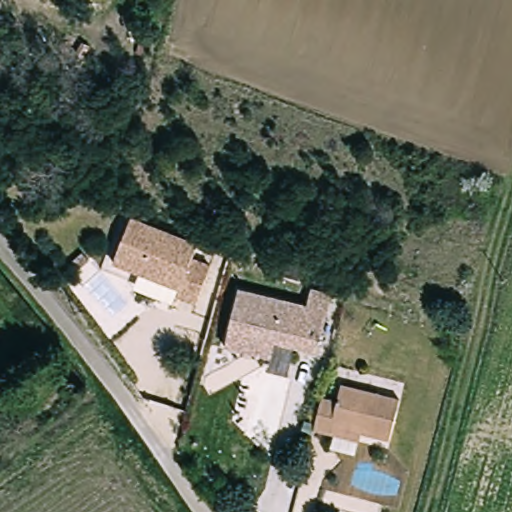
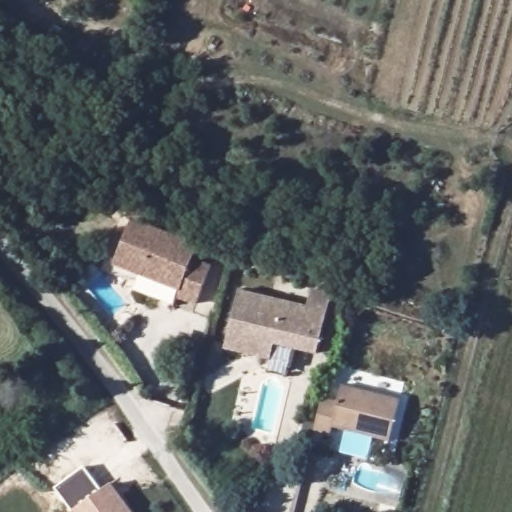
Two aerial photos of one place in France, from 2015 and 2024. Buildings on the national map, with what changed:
unchanged [(133,218),(200,245),(194,259),(213,266),(198,303),(178,295),(181,288),(116,261),(133,218)]
unchanged [(242,290),(309,309),(314,292),(335,298),(318,356),(275,343),(271,359),(226,346),(242,290)]
unchanged [(357,441),(343,438),(328,433),(312,429),(312,428),(321,396),(342,402),(347,387),(398,402),(387,443),(374,440),(372,446),(357,441)]
new [(55,491),(84,469),(102,490),(112,482),(133,512),(73,512),(55,491)]

